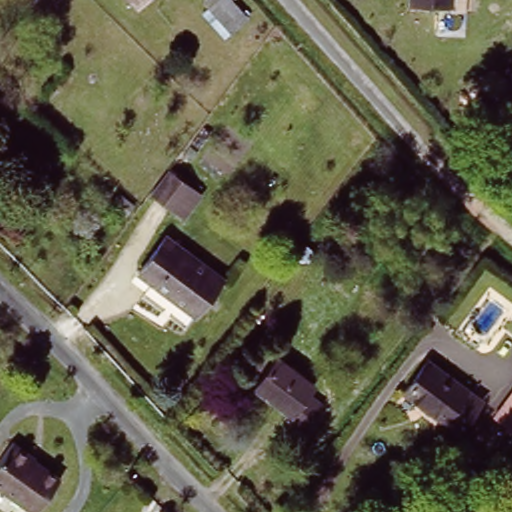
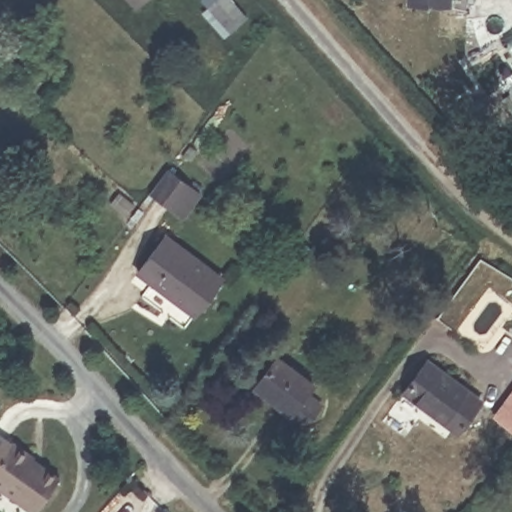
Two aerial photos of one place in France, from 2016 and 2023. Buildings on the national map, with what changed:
unchanged [(132,0),(146,0),(139,7),(132,0)]
unchanged [(232,35),(208,12),(220,0),(232,0),(249,17),(232,35)]
unchanged [(419,2),(419,0),(457,0),(457,3),(419,2)]
unchanged [(183,215),(176,209),(151,191),(169,167),(193,185),(201,191),(183,215)]
unchanged [(221,278),(193,317),(136,275),(163,238),(221,278)]
unchanged [(311,382),(304,391),(320,402),(302,425),(288,415),(291,408),(253,380),(274,353),(311,382)]
unchanged [(483,396),(456,434),(398,393),(424,357),(483,396)]
unchanged [(39,512),(35,512),(0,487),(0,460),(11,443),(59,478),(39,512)]

